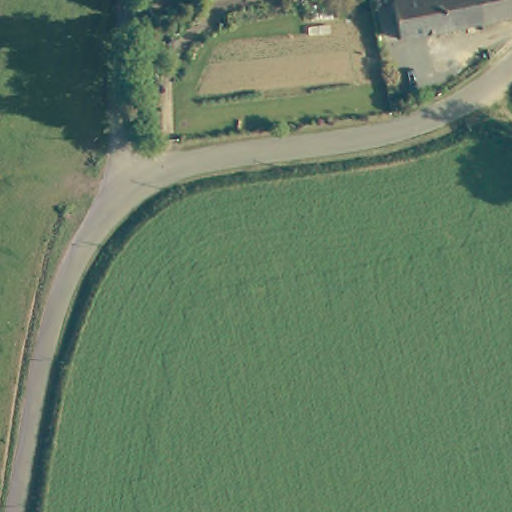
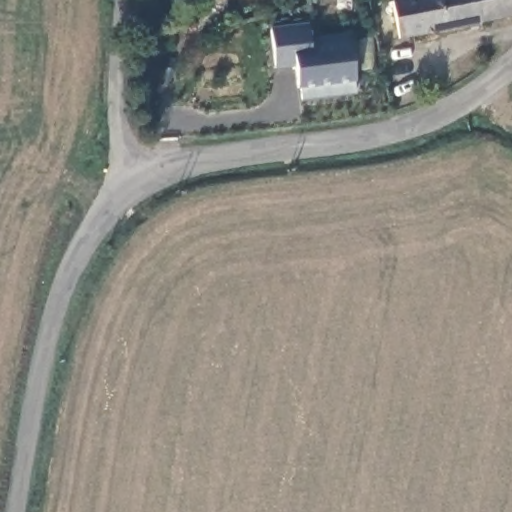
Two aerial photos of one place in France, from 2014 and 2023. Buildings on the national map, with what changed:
unchanged [(399,37),(392,1),(397,0),(477,0),(481,21),(399,37)]
unchanged [(477,0),(512,0),(512,15),(481,21),(477,0)]
new [(308,25),(310,40),(346,36),(347,46),(351,45),(356,80),(354,80),(356,91),(302,98),(300,87),(297,87),(295,65),(275,67),(271,29),(308,25)]

